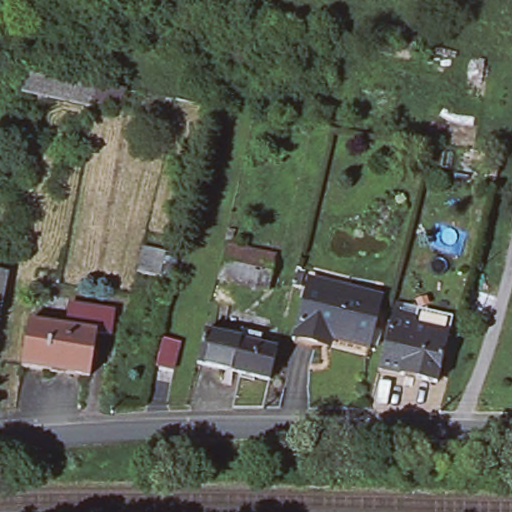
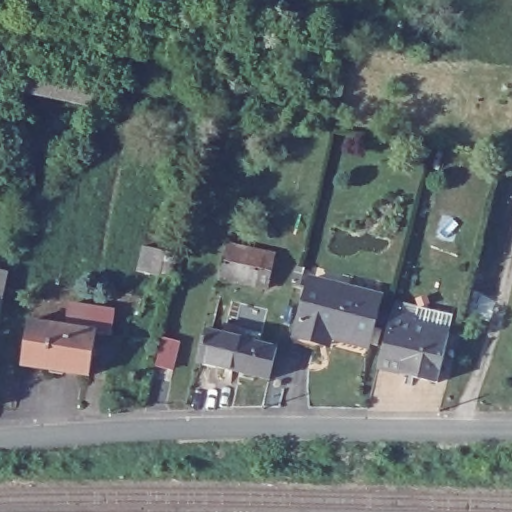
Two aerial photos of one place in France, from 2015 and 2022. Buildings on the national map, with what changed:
unchanged [(57,79),(84,86),(80,104),(52,98),(57,79)]
unchanged [(225,236),(275,249),(267,283),(217,271),(225,236)]
unchanged [(0,319),(0,264),(10,264),(0,319)]
unchanged [(310,283),(330,288),(378,301),(365,350),(318,337),(315,347),(293,341),(307,291),(310,283)]
unchanged [(75,301),(120,310),(117,332),(101,330),(102,328),(70,323),(75,301)]
unchanged [(382,364),(397,307),(419,313),(417,319),(405,369),(382,364)]
unchanged [(102,328),(101,330),(93,371),(48,363),(38,362),(25,359),(33,317),(47,319),(55,321),(70,323),(102,328)]
unchanged [(417,319),(452,328),(439,378),(405,369),(417,319)]
unchanged [(270,379),(201,364),(209,331),(227,335),(229,330),(241,332),(242,329),(263,334),(261,343),(278,347),(270,379)]

